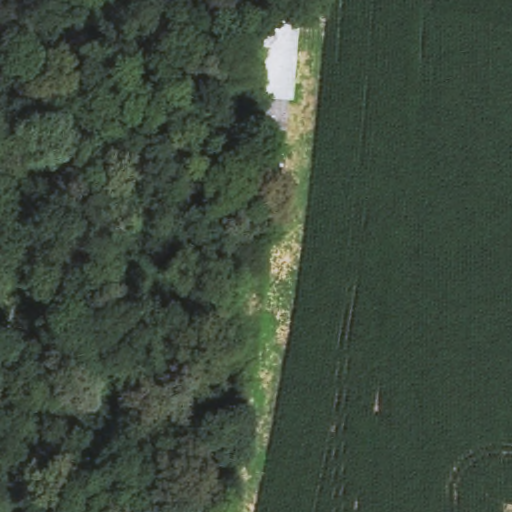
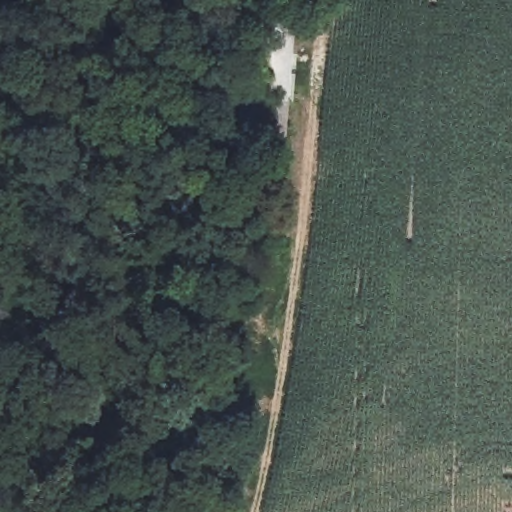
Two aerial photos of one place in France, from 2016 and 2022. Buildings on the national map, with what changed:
unchanged [(288,178),(249,171),(268,38),(305,47),(288,178)]

